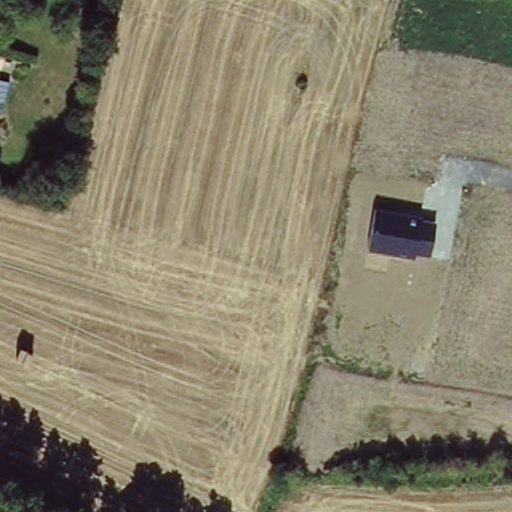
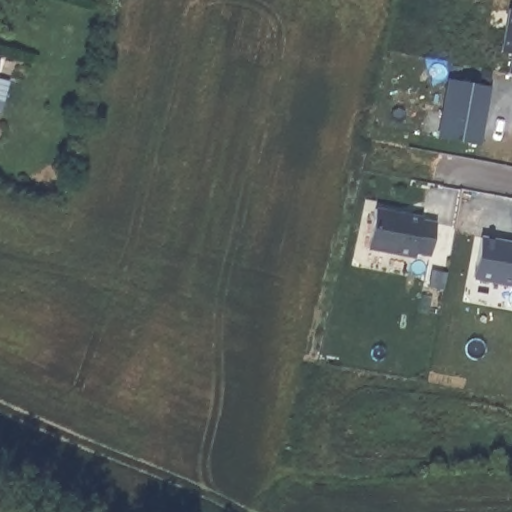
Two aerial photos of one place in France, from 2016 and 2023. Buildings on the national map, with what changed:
new [(502,47),(510,4),(512,4),(512,48),(502,47)]
new [(510,68),(512,60),(512,68),(510,68)]
unchanged [(0,88),(0,69),(6,71),(0,88)]
new [(478,147),(437,139),(448,81),(489,89),(478,147)]
unchanged [(421,215),(421,218),(435,221),(430,255),(415,253),(414,258),(365,249),(374,207),(421,215)]
new [(474,273),(481,232),(512,238),(512,280),(474,273)]

